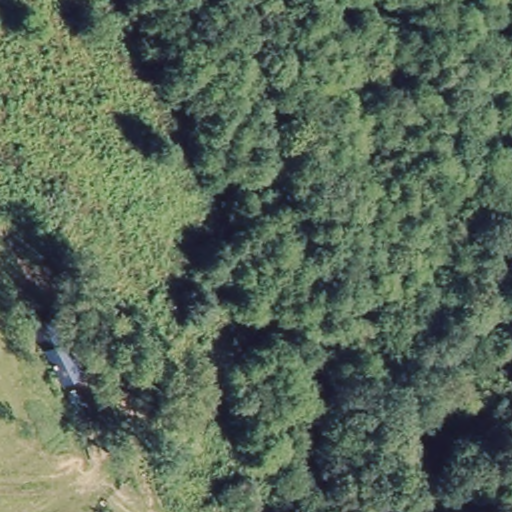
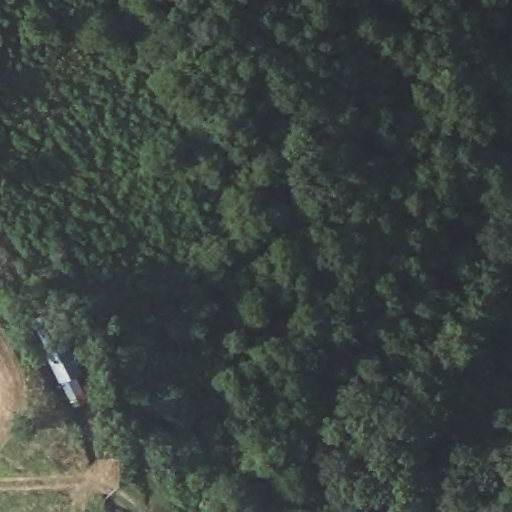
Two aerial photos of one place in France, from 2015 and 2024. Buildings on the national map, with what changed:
unchanged [(41,344),(60,337),(80,373),(63,384),(41,344)]

